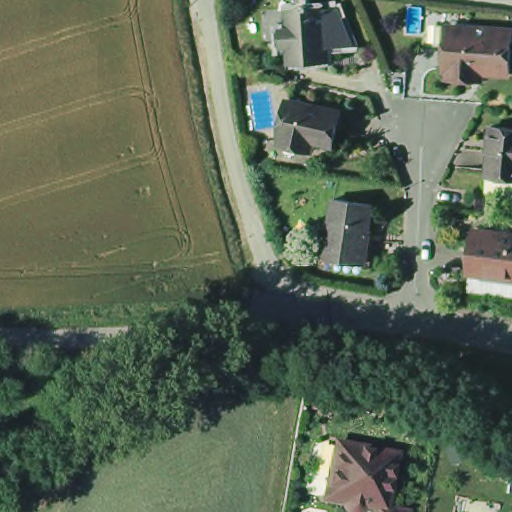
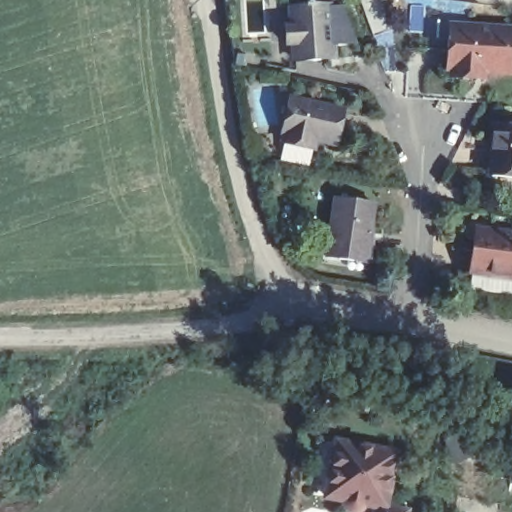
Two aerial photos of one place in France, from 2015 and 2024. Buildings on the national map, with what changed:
unchanged [(290,47),(282,47),(282,28),(290,28),(290,9),(302,9),(305,4),(309,9),(324,9),(325,26),(341,25),(341,49),(325,49),(324,62),(290,61),(290,47)]
unchanged [(455,73),(452,73),(453,54),(430,52),(433,15),(455,18),(455,29),(475,31),(512,34),(512,77),(487,75),(487,84),(478,83),(455,81),(455,73)]
unchanged [(282,143),(282,139),(288,99),(342,111),(335,146),(314,141),(312,150),(282,143)]
unchanged [(483,125),(512,128),(512,173),(478,170),(480,164),(483,125)]
unchanged [(335,203),(374,208),(365,268),(326,263),(335,203)]
unchanged [(474,244),(475,234),(487,236),(512,239),(512,281),(470,277),(474,244)]
unchanged [(445,442),(463,434),(471,452),(453,459),(445,442)]
unchanged [(342,444),(403,457),(392,510),(400,512),(380,512),(381,508),(368,505),(364,509),(355,510),(350,500),(332,496),(342,444)]

